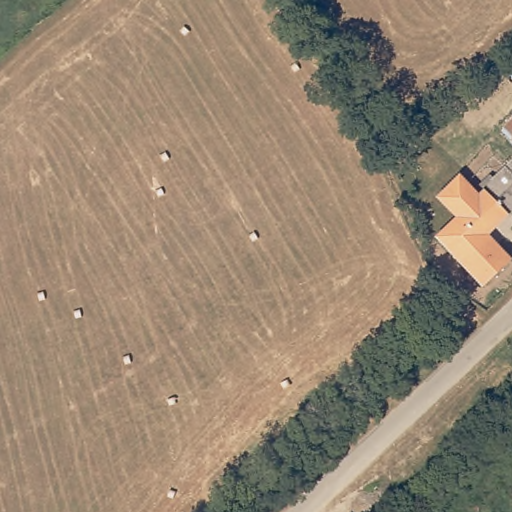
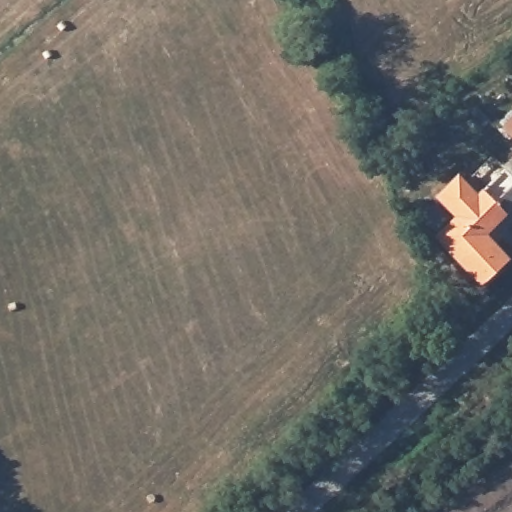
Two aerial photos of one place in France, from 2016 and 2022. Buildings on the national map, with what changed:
unchanged [(512,122),(512,151),(497,136),(512,122)]
unchanged [(436,201),(458,179),(479,196),(512,164),(512,211),(487,237),(509,261),(482,288),(462,269),(434,240),(437,238),(455,219),(436,201)]

